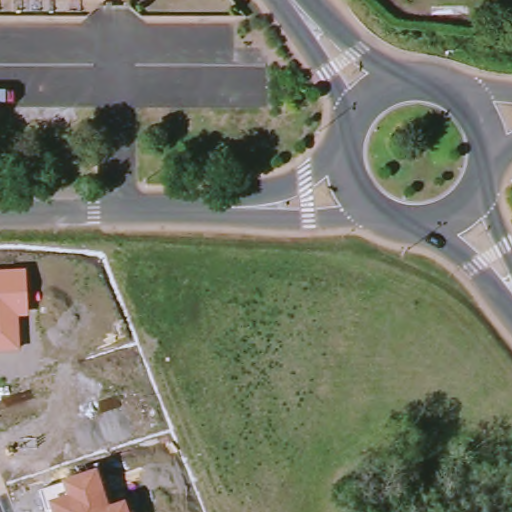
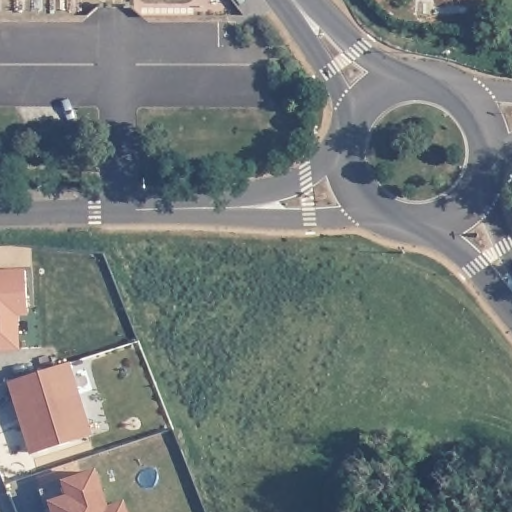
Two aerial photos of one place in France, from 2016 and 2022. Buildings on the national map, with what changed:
unchanged [(25,273),(28,318),(19,318),(22,352),(0,352),(0,274),(25,273)]
new [(29,453),(7,383),(71,363),(92,434),(29,453)]
unchanged [(98,469),(110,506),(123,501),(127,512),(52,512),(45,489),(98,469)]

